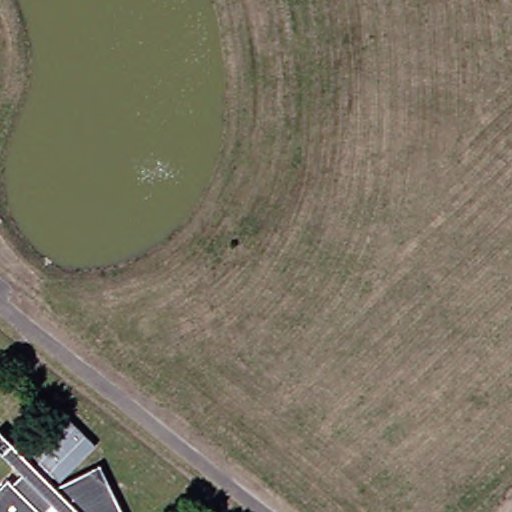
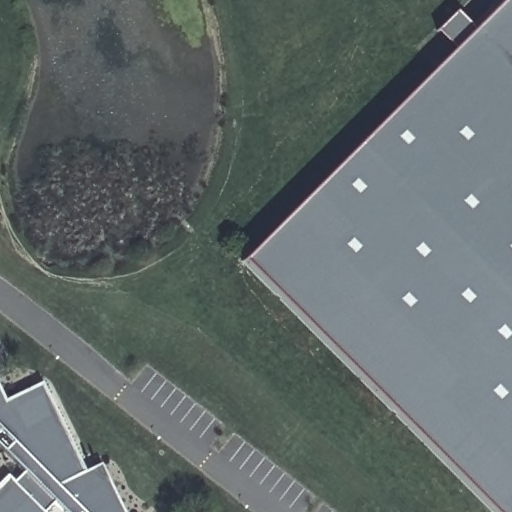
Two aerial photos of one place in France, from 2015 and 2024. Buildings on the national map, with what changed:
new [(497,512),(245,262),(506,0),(512,0),(512,512),(497,512)]
new [(49,510),(51,512),(0,512),(0,487),(13,474),(20,480),(30,471),(0,440),(0,374),(10,395),(46,377),(89,467),(105,458),(131,512),(73,512),(60,498),(49,510)]
demolished [(36,459),(26,449),(63,413),(92,442),(55,478),(50,472),(46,477),(39,470),(32,463),(36,459)]
demolished [(42,512),(0,512),(0,480),(6,486),(20,472),(0,451),(0,430),(32,463),(39,470),(46,477),(51,482),(93,460),(117,512),(58,512),(50,504),(42,512)]

